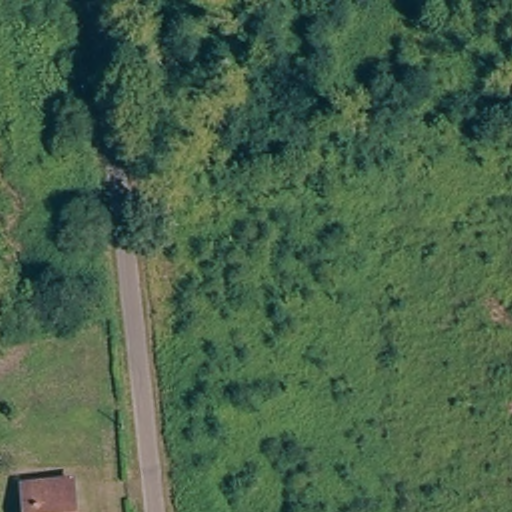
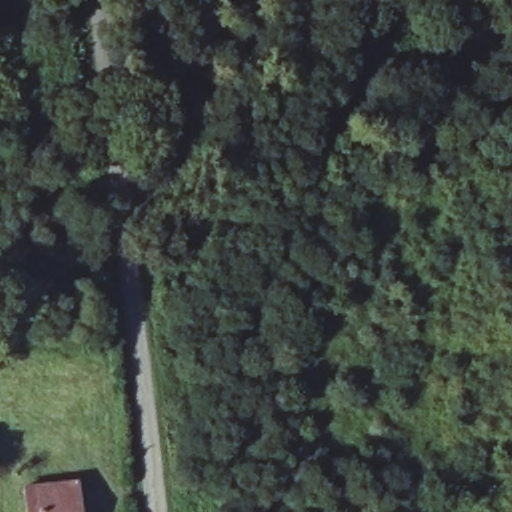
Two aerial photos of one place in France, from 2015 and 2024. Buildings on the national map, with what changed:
unchanged [(25,491),(73,486),(76,512),(26,512),(25,491)]

